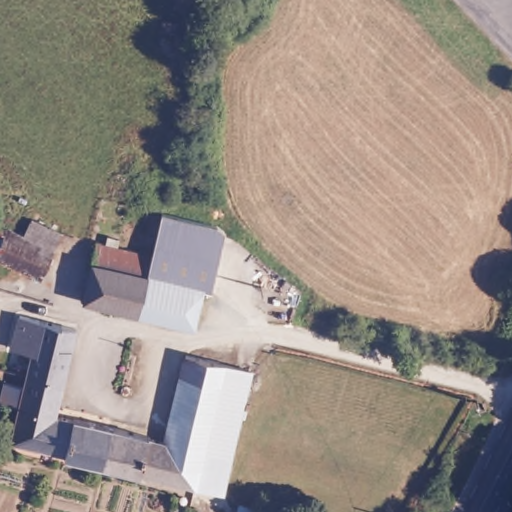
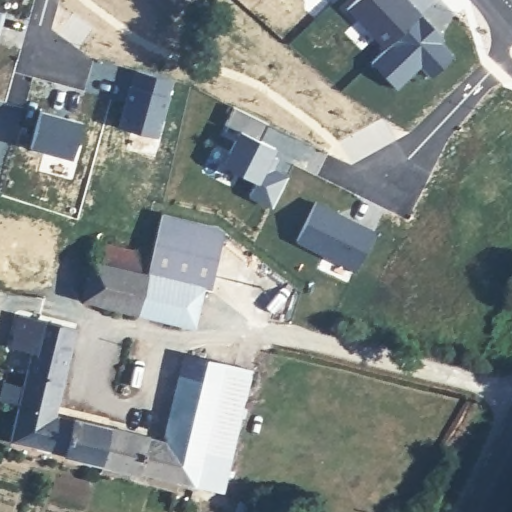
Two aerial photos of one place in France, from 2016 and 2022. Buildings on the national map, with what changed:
new [(334,2),(332,0),(335,0),(334,2)]
new [(429,80),(419,68),(398,89),(371,62),(383,48),(347,9),(356,0),(407,0),(455,53),(429,80)]
new [(138,69),(173,79),(159,134),(122,124),(138,69)]
new [(240,131),(226,124),(234,106),(268,124),(261,141),(274,148),(271,155),(277,158),(272,169),(287,177),(273,206),(251,195),(259,182),(224,165),(240,131)]
new [(82,121),(73,158),(32,146),(41,110),(82,121)]
new [(374,233),(356,270),(298,239),(316,203),(374,233)]
unchanged [(202,289),(146,277),(151,256),(160,218),(163,210),(218,228),(202,289)]
demolished [(18,230),(24,214),(63,228),(45,274),(0,259),(0,222),(18,230)]
unchanged [(151,256),(146,277),(137,315),(81,302),(93,238),(151,256)]
demolished [(246,287),(229,282),(239,241),(255,251),(246,287)]
unchanged [(190,327),(137,315),(146,277),(202,289),(190,327)]
unchanged [(23,360),(4,357),(11,311),(30,316),(34,305),(72,316),(52,404),(16,394),(23,360)]
unchanged [(187,342),(256,361),(226,487),(154,471),(164,428),(187,342)]
unchanged [(52,404),(65,408),(58,449),(7,438),(16,394),(52,404)]
unchanged [(98,458),(58,449),(65,408),(75,411),(108,417),(98,458)]
unchanged [(164,428),(154,471),(98,458),(108,417),(164,428)]
new [(272,512),(231,512),(238,497),(272,512)]

